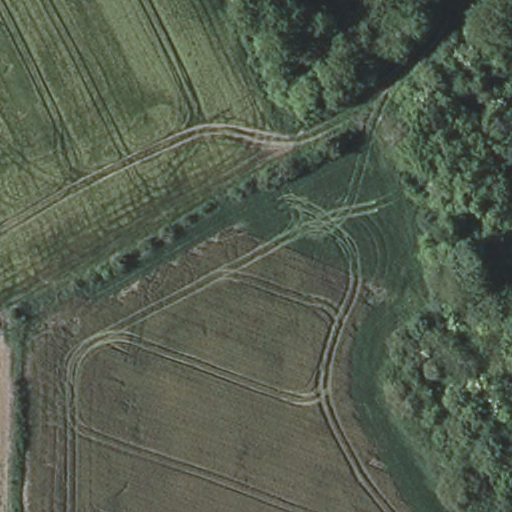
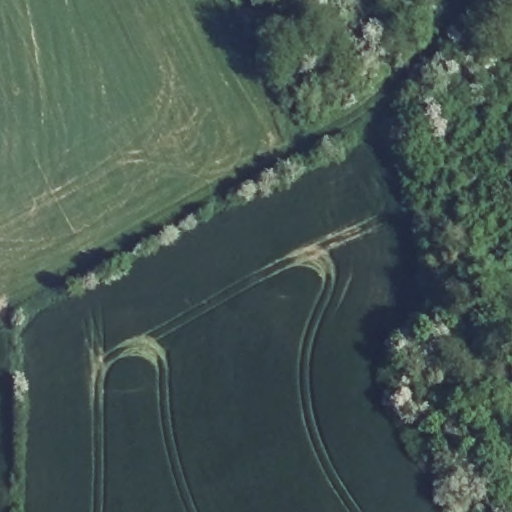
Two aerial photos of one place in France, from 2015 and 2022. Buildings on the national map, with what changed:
unchanged [(460,388),(423,402),(406,363),(442,345),(460,388)]

